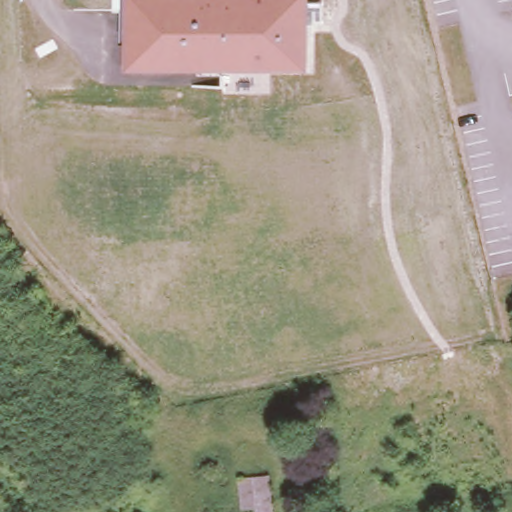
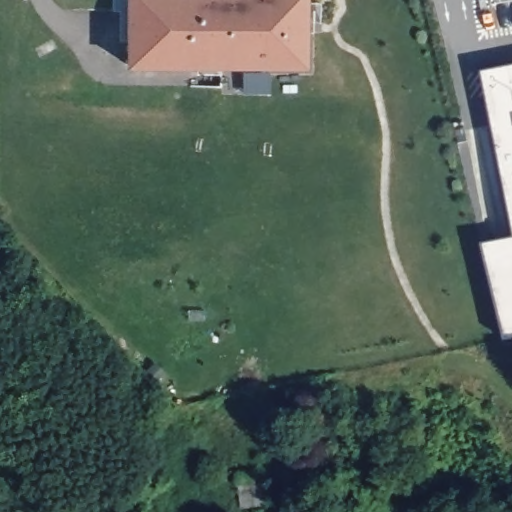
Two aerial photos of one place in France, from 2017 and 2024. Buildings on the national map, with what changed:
unchanged [(308,70),(126,69),(125,0),(309,0),(308,70)]
new [(512,64),(512,223),(481,70),(512,64)]
new [(483,242),(512,236),(512,339),(505,340),(483,242)]
unchanged [(252,512),(251,504),(238,505),(234,473),(268,470),(272,512),(252,512)]

